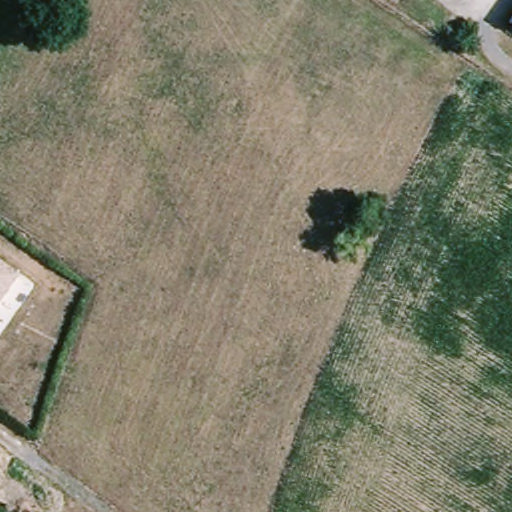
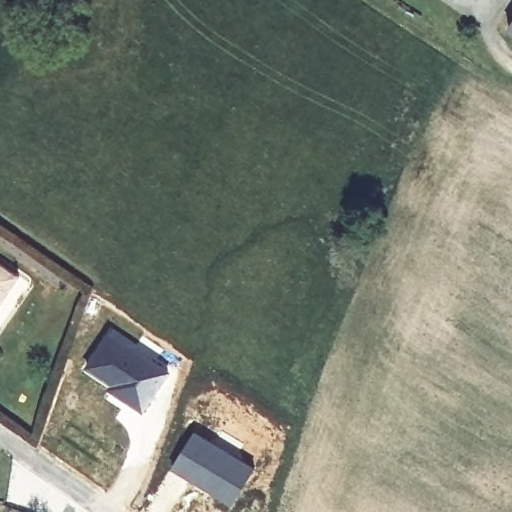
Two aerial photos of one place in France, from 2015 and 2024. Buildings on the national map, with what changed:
unchanged [(512,35),(509,33),(512,29),(512,35)]
unchanged [(22,275),(0,310),(0,260),(22,275)]
new [(109,325),(157,355),(171,370),(142,415),(123,401),(101,380),(82,367),(109,325)]
new [(193,430),(254,469),(229,508),(168,470),(193,430)]

